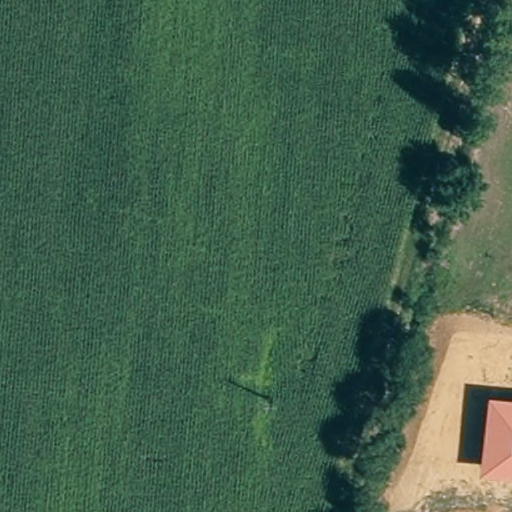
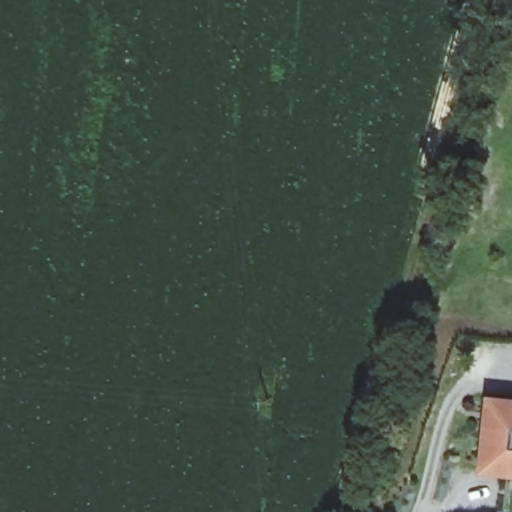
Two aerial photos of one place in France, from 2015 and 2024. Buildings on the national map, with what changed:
unchanged [(488,395),(512,397),(512,479),(480,476),(488,395)]

